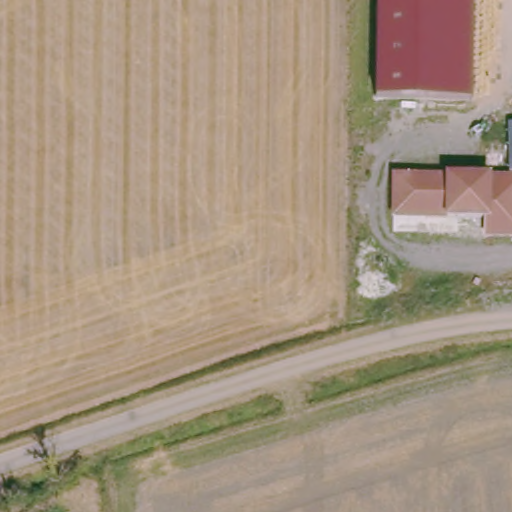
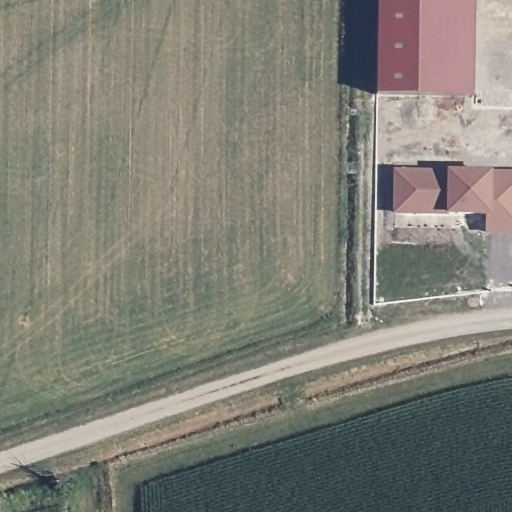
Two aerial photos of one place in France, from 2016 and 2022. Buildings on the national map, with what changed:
unchanged [(375,98),(377,0),(473,0),(472,98),(375,98)]
unchanged [(393,170),(447,171),(446,171),(489,173),(489,170),(510,171),(509,119),(512,119),(512,234),(484,234),(483,217),(445,216),(445,210),(392,215),(393,170)]

